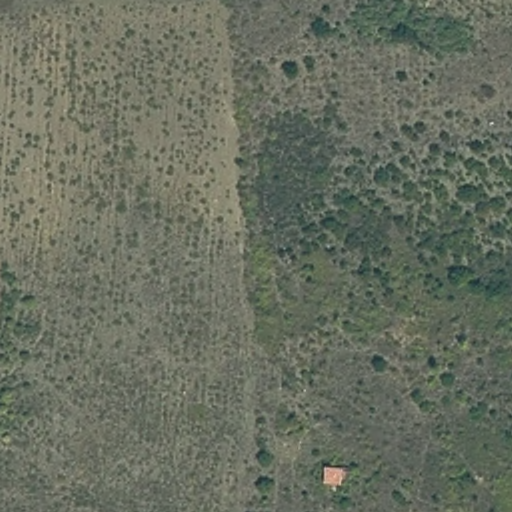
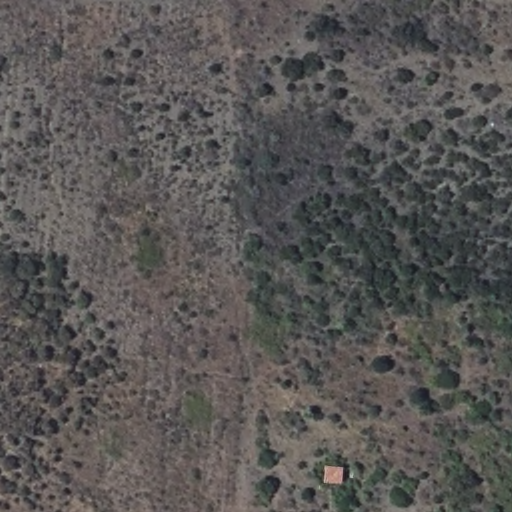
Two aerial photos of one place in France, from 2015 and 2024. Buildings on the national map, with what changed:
unchanged [(322,464),(345,467),(344,482),(321,479),(322,464)]

